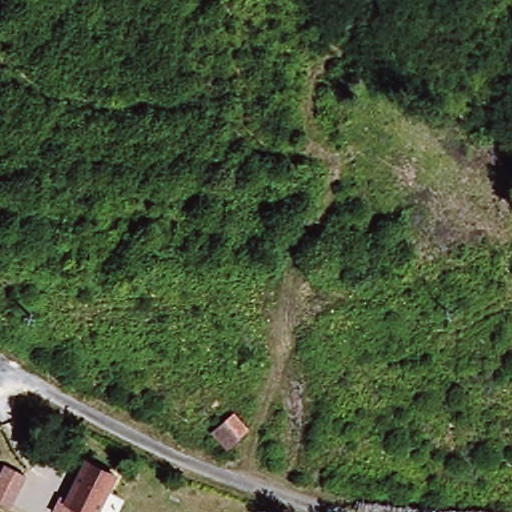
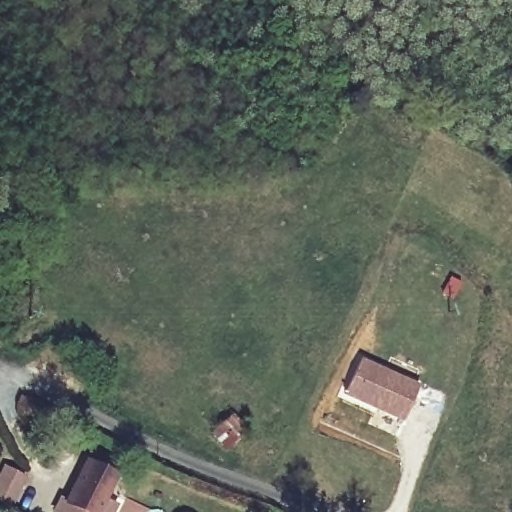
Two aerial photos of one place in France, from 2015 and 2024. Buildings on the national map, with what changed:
new [(402,422),(345,393),(362,357),(420,384),(402,422)]
unchanged [(122,472),(101,512),(60,512),(90,455),(122,472)]

